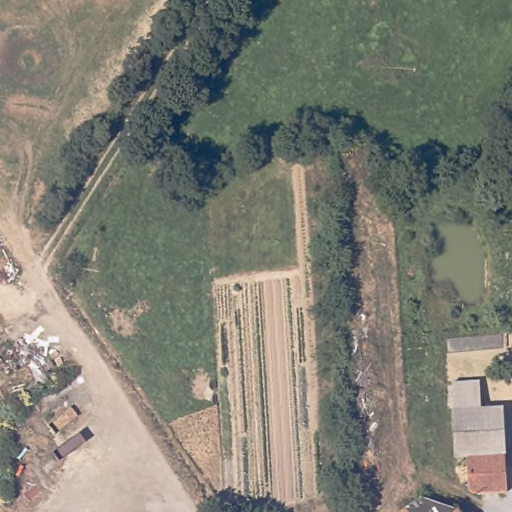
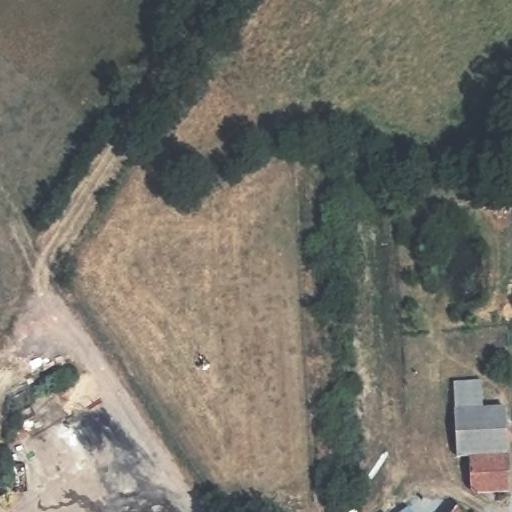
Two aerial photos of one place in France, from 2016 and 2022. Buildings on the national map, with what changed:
unchanged [(471,478),(460,479),(458,455),(453,407),(452,397),(450,382),(476,379),(477,396),(478,405),(498,404),(504,450),(510,449),(512,466),(512,487),(477,492),(473,490),(471,478)]
unchanged [(409,507),(421,499),(455,506),(461,512),(412,512),(409,507)]
unchanged [(409,507),(412,512),(402,512),(409,507)]
unchanged [(470,511),(471,512),(468,512),(470,511)]

